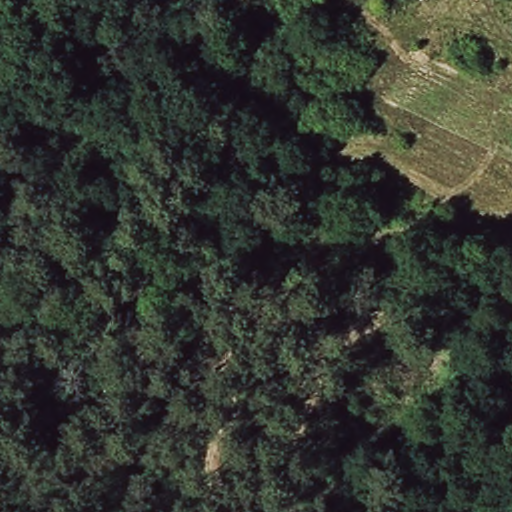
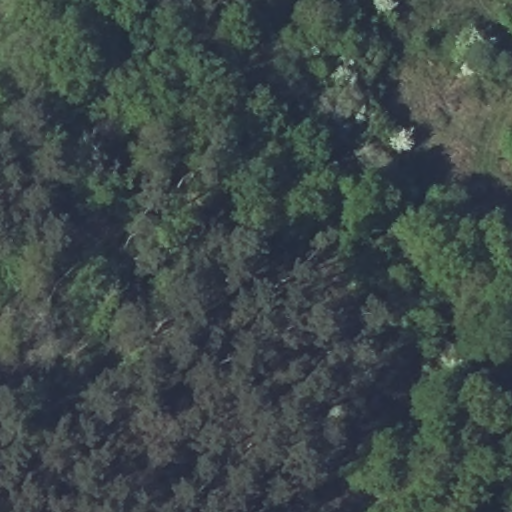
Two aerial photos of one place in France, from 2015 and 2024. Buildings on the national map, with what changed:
unchanged [(460,61),(454,47),(470,41),(476,54),(460,61)]

